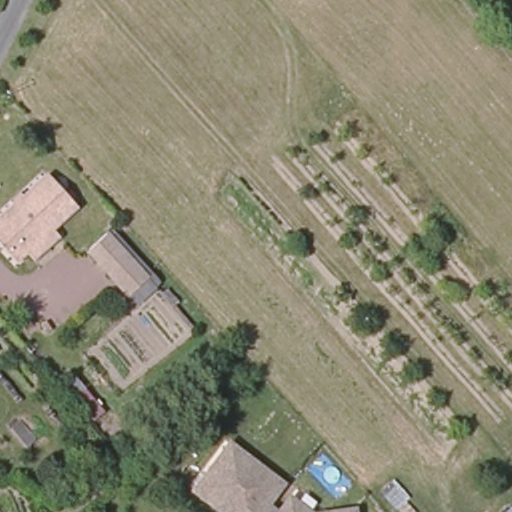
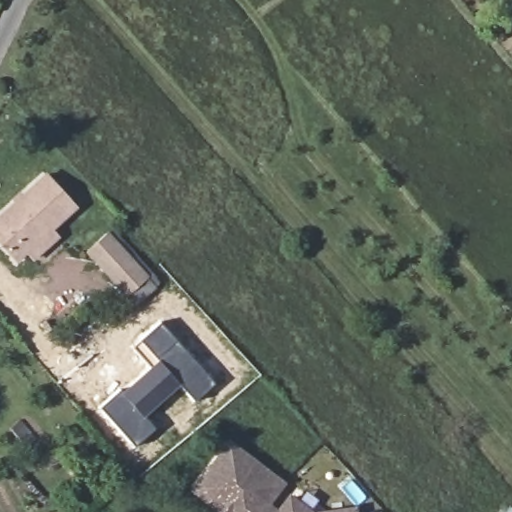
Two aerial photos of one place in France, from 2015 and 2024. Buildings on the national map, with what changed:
unchanged [(25,250),(12,260),(0,246),(0,216),(47,174),(75,207),(50,228),(57,237),(32,258),(25,250)]
unchanged [(142,281),(127,296),(89,251),(106,236),(142,281)]
demolished [(102,329),(84,345),(46,301),(65,285),(102,329)]
new [(161,322),(214,382),(194,400),(180,385),(145,416),(156,428),(136,445),(101,407),(122,389),(123,390),(151,367),(134,347),(161,322)]
unchanged [(265,509),(268,512),(217,512),(195,495),(217,464),(229,447),(281,488),(265,509)]
unchanged [(302,512),(283,512),(290,503),(302,512)]

